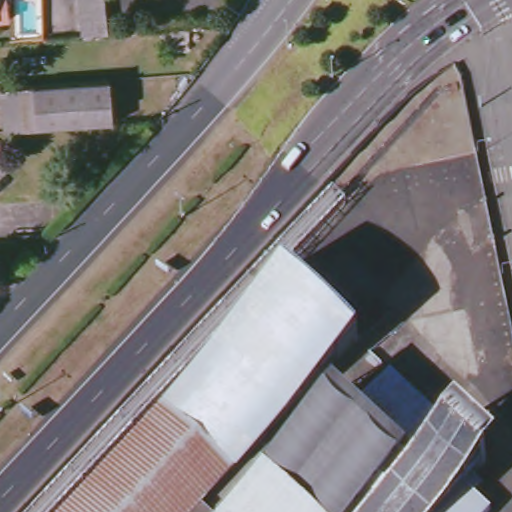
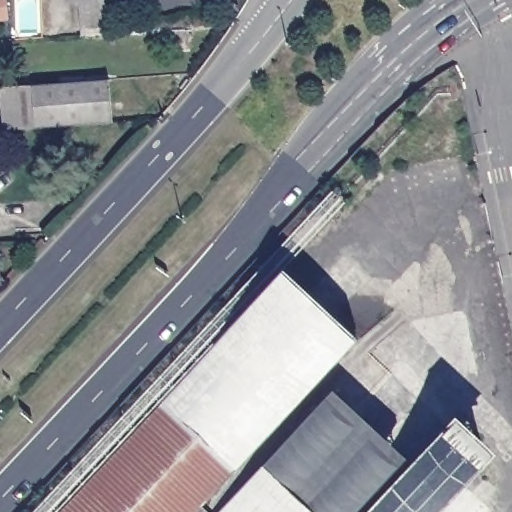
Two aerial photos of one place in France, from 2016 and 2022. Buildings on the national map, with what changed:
unchanged [(10,12),(0,13),(0,0),(9,0),(10,12)]
unchanged [(111,32),(82,34),(79,0),(108,0),(111,32)]
unchanged [(30,82),(110,76),(113,120),(2,130),(0,108),(0,86),(30,82)]
unchanged [(360,333),(205,499),(193,512),(57,512),(285,265),(360,333)]
unchanged [(218,511),(330,391),(352,412),(393,368),(489,458),(473,476),(501,503),(493,512),(365,512),(409,464),(403,459),(354,512),(193,512),(205,499),(218,511)]

